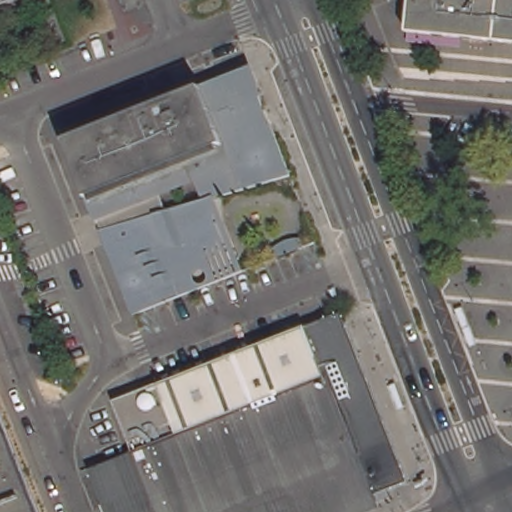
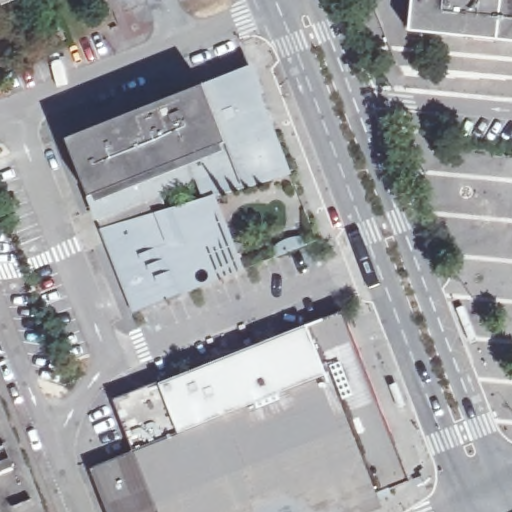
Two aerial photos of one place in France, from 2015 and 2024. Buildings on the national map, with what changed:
unchanged [(0,1),(0,0),(2,0),(0,1)]
unchanged [(492,38),(490,38),(480,37),(458,35),(447,34),(405,30),(408,0),(512,0),(512,40),(503,39),(492,38)]
unchanged [(190,292),(137,312),(104,229),(117,225),(112,213),(100,218),(68,139),(147,107),(153,105),(154,106),(185,93),(185,92),(250,65),(292,174),(213,197),(220,246),(206,246),(220,280),(190,292)]
unchanged [(276,246),(285,241),(298,237),(302,237),(305,247),(281,256),(276,246)]
unchanged [(327,340),(347,332),(362,369),(410,490),(390,498),(392,504),(381,508),(377,510),(308,335),(322,329),(327,340)]
unchanged [(116,411),(308,335),(377,510),(372,512),(103,512),(98,497),(97,495),(93,485),(138,467),(116,411)]
unchanged [(41,512),(0,512),(0,408),(41,512)]

